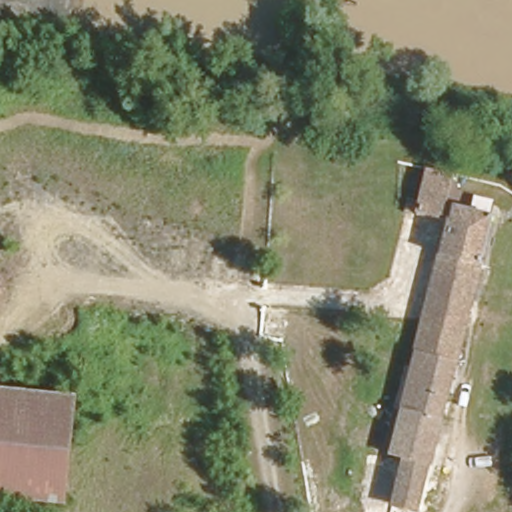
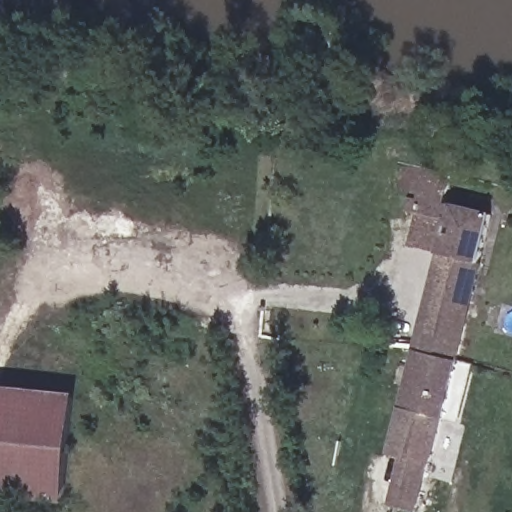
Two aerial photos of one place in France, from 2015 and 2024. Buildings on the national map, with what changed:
unchanged [(412,334),(438,213),(451,215),(455,199),(487,206),(456,345),(412,334)]
unchanged [(432,450),(423,448),(412,496),(388,490),(398,440),(389,438),(412,334),(456,345),(432,450)]
unchanged [(0,488),(0,379),(75,389),(62,496),(0,488)]

